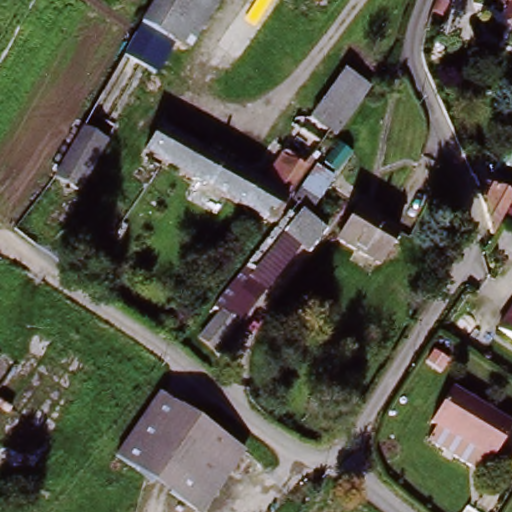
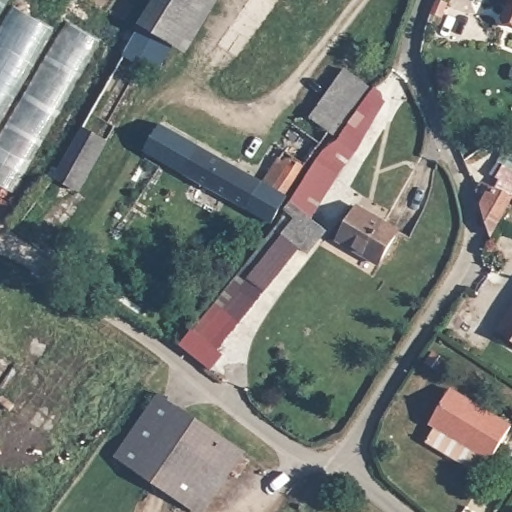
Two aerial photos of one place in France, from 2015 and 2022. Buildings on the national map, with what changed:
new [(17,0),(21,0),(101,41),(11,194),(0,186),(0,28),(17,0)]
demolished [(114,42),(49,0),(91,0),(126,25),(114,42)]
unchanged [(141,23),(155,0),(220,0),(183,58),(141,23)]
unchanged [(508,0),(512,0),(512,31),(498,25),(508,0)]
new [(173,50),(158,76),(120,59),(141,23),(173,50)]
unchanged [(371,85),(335,139),(309,121),(346,69),(371,85)]
unchanged [(261,182),(284,147),(308,164),(286,198),(293,201),(274,229),(144,154),(161,123),(261,182)]
unchanged [(108,142),(78,192),(53,177),(82,127),(108,142)]
unchanged [(353,152),(335,176),(337,177),(310,215),(293,201),(319,161),(321,164),(339,139),(353,152)]
unchanged [(488,242),(487,227),(478,205),(484,197),(491,197),(496,194),(512,205),(488,242)]
new [(512,217),(505,214),(512,200),(512,217)]
unchanged [(396,232),(376,263),(336,237),(356,206),(396,232)]
unchanged [(326,231),(269,300),(264,296),(214,352),(196,337),(300,214),(326,231)]
unchanged [(512,305),(512,342),(496,332),(512,305)]
unchanged [(512,430),(489,466),(483,462),(474,473),(427,444),(434,430),(430,427),(454,387),(512,425),(512,430)]
unchanged [(160,392),(250,457),(237,476),(225,467),(194,508),(116,452),(160,392)]

